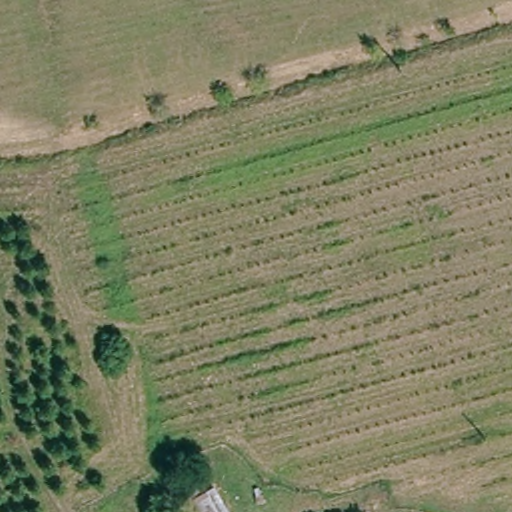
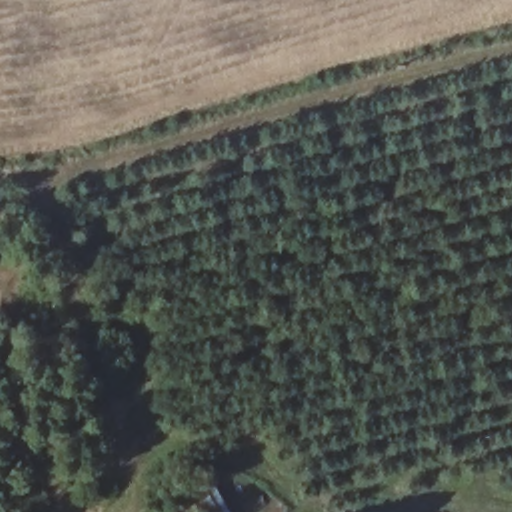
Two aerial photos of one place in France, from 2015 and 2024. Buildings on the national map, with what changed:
unchanged [(206,491),(218,486),(233,512),(193,512),(178,487),(199,475),(206,491)]

